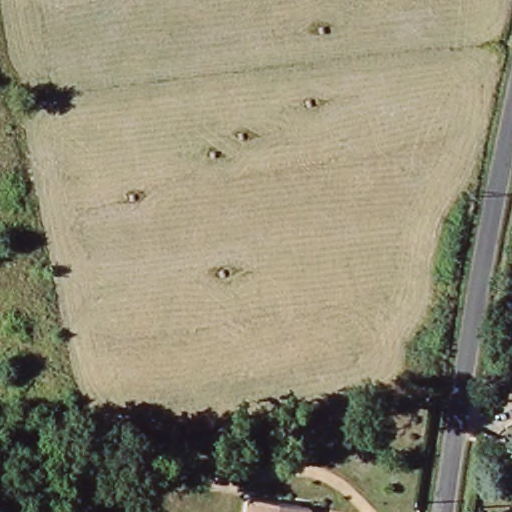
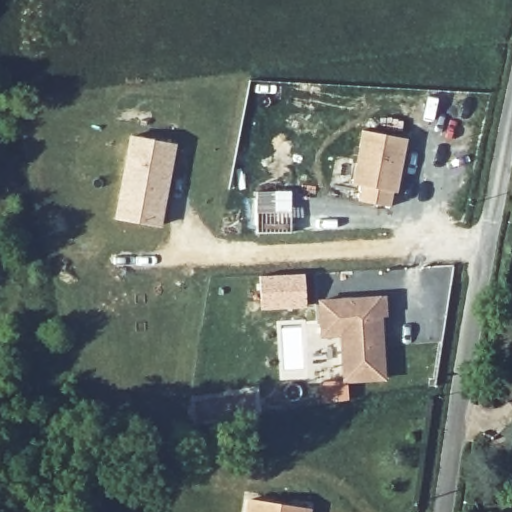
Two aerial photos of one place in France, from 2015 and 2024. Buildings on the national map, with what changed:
new [(362,130),(405,140),(393,194),(389,193),(385,207),(345,198),(362,130)]
new [(128,134),(176,144),(160,228),(112,219),(128,134)]
new [(304,273),(305,308),(259,311),(257,275),(304,273)]
new [(379,297),(385,377),(346,380),(343,332),(323,334),(320,300),(379,297)]
unchanged [(299,508),(299,512),(243,512),(244,501),(299,508)]

